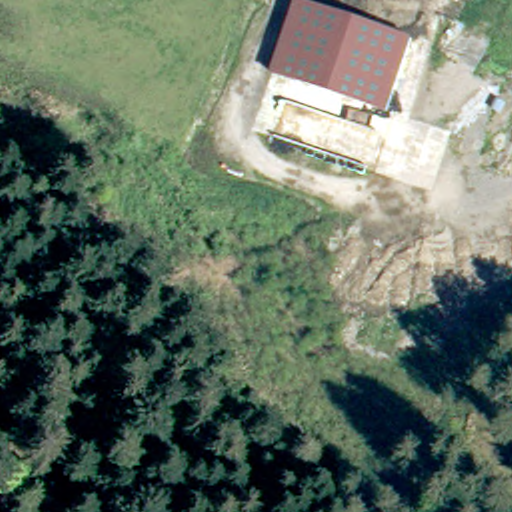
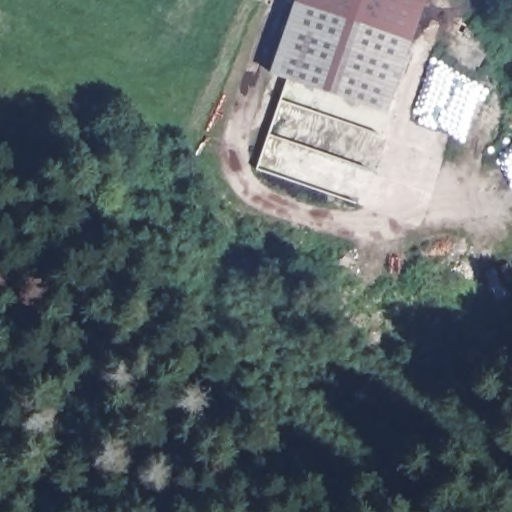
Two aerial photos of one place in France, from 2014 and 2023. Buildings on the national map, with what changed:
unchanged [(305,0),(411,38),(389,113),(275,70),(297,0),(305,0)]
new [(425,0),(411,38),(305,0),(425,0)]

